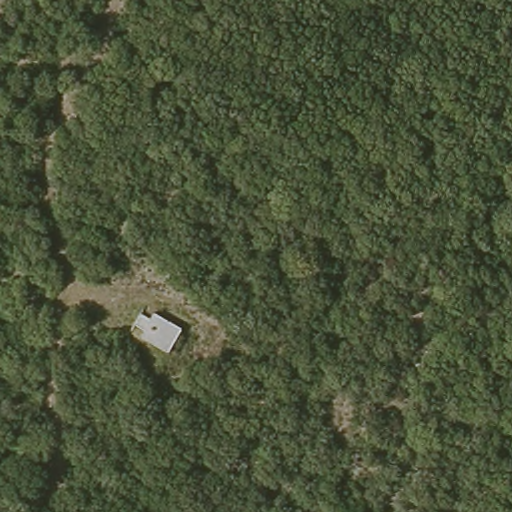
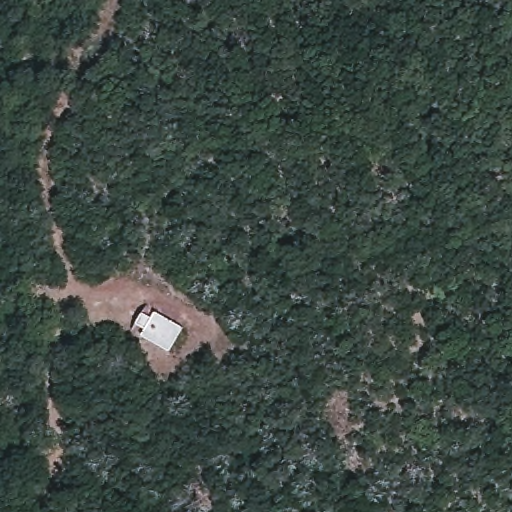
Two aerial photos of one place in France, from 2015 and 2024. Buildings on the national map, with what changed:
unchanged [(178,354),(142,337),(156,308),(190,326),(178,354)]

